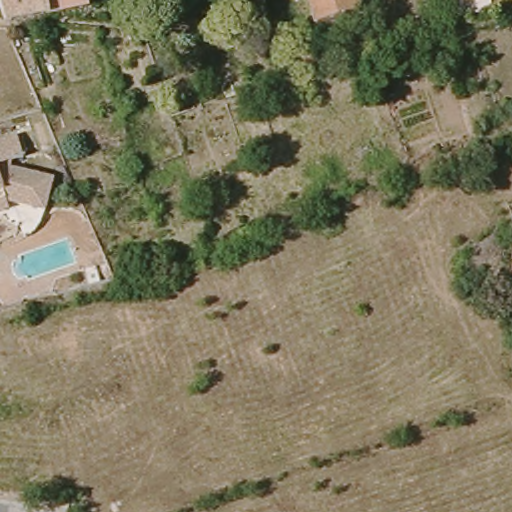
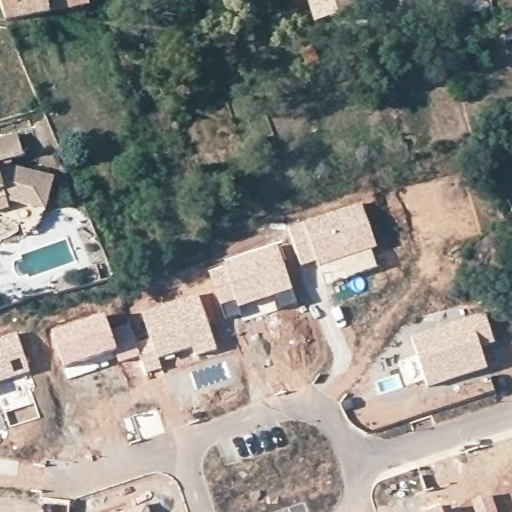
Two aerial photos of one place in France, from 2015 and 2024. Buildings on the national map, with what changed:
unchanged [(45,4),(40,5),(1,11),(0,6),(0,0),(44,0),(45,4)]
unchanged [(45,4),(44,0),(65,0),(45,4)]
demolished [(201,3),(196,6),(194,0),(200,0),(201,3)]
demolished [(280,0),(291,0),(292,5),(282,8),(280,0)]
unchanged [(361,11),(317,24),(310,0),(358,0),(361,11)]
demolished [(336,33),(337,42),(329,41),(329,33),(336,33)]
demolished [(343,38),(353,36),(356,44),(346,47),(343,38)]
demolished [(308,70),(305,57),(315,55),(317,68),(308,70)]
unchanged [(23,158),(11,161),(13,166),(55,180),(45,212),(10,201),(11,207),(0,210),(0,141),(17,136),(23,158)]
new [(327,283),(323,269),(318,270),(315,262),(300,268),(287,227),(302,222),(361,202),(378,248),(371,251),(377,267),(327,283)]
new [(223,264),(223,261),(277,243),(293,291),(236,310),(238,314),(225,319),(207,270),(223,264)]
new [(147,339),(140,312),(198,294),(217,350),(193,357),(191,350),(160,361),(162,369),(145,374),(135,343),(147,339)]
new [(485,312),(495,343),(481,348),(488,369),(428,389),(410,337),(485,312)]
new [(105,315),(118,352),(64,369),(51,332),(105,315)]
new [(29,372),(0,383),(0,337),(16,331),(29,372)]
new [(498,512),(474,512),(470,501),(491,494),(498,512)]
new [(149,512),(112,512),(145,503),(149,512)]
new [(427,512),(443,507),(445,512),(427,512)]
new [(460,512),(450,512),(458,509),(460,512)]

